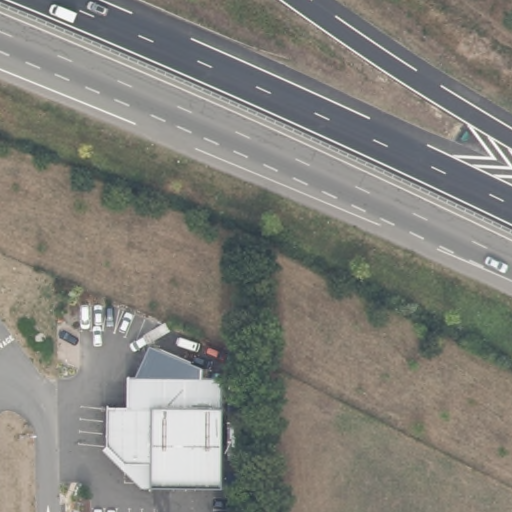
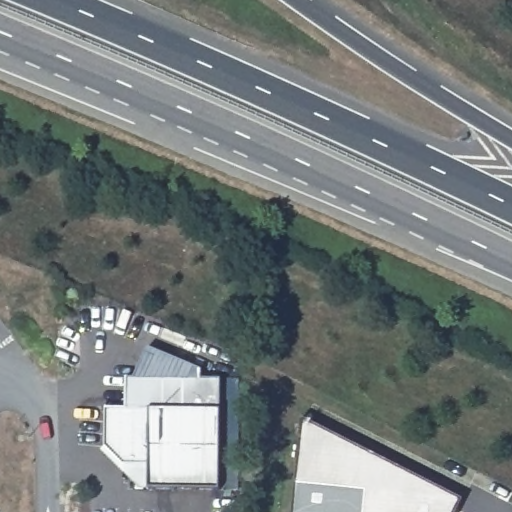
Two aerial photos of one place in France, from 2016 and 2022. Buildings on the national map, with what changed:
unchanged [(135,377),(148,347),(200,368),(199,378),(135,377)]
unchanged [(124,406),(124,377),(219,378),(220,490),(147,489),(147,486),(139,489),(100,447),(104,444),(105,406),(124,406)]
new [(455,512),(292,512),(301,416),(462,497),(455,512)]

